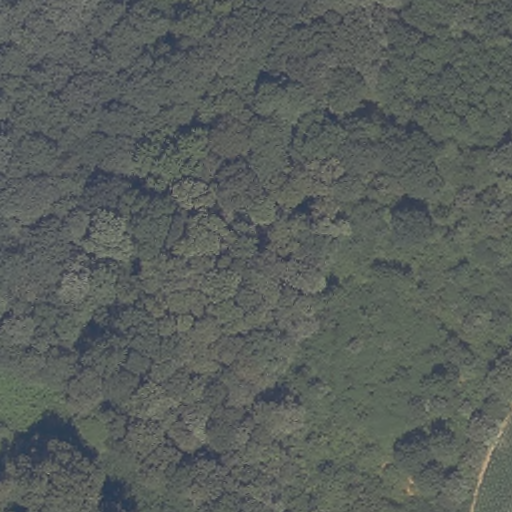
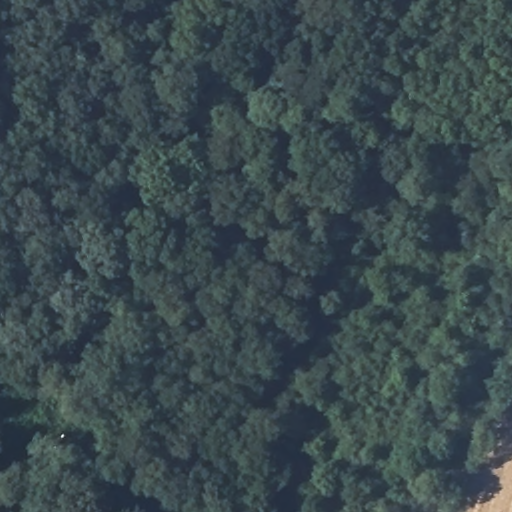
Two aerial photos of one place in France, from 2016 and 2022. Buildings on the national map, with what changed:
[]

